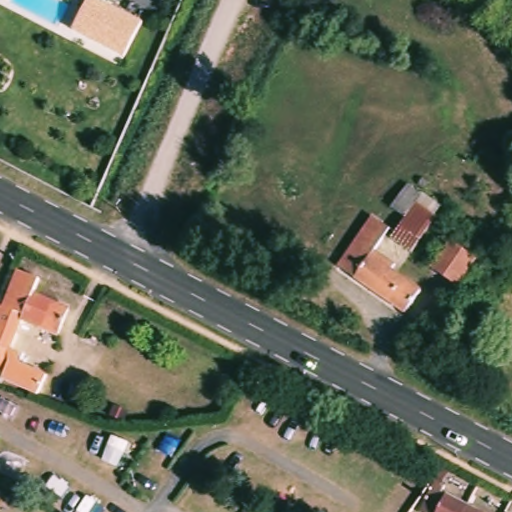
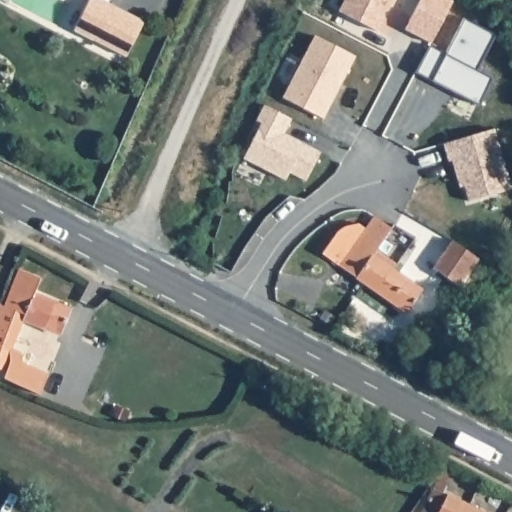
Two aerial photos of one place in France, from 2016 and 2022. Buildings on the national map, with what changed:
unchanged [(126,59),(71,31),(88,0),(106,0),(144,21),(126,59)]
new [(343,0),(394,0),(377,32),(337,11),(343,0)]
new [(419,0),(449,0),(451,1),(430,42),(404,29),(419,0)]
new [(416,71),(429,46),(445,54),(463,19),(493,34),(475,70),(491,78),(478,104),(416,71)]
new [(281,98),(313,36),(355,57),(323,120),(281,98)]
new [(242,158),(261,123),(255,120),(263,105),(291,119),(285,133),(320,151),(304,182),(288,173),(285,181),(242,158)]
new [(511,189),(467,202),(462,187),(458,187),(451,160),(447,161),(442,143),(494,129),(511,189)]
demolished [(406,218),(417,203),(437,217),(412,253),(392,239),(406,218)]
unchanged [(338,266),(373,217),(390,230),(375,251),(395,265),(392,271),(421,290),(406,313),(338,266)]
unchanged [(458,287),(432,268),(451,241),(477,259),(458,287)]
demolished [(432,242),(438,246),(432,254),(427,251),(432,242)]
unchanged [(33,294),(69,309),(59,335),(23,320),(10,350),(19,354),(20,361),(46,375),(38,395),(3,379),(1,383),(0,382),(0,304),(4,306),(19,271),(40,279),(33,294)]
unchanged [(124,422),(110,416),(114,406),(128,412),(124,422)]
unchanged [(441,486),(451,491),(447,498),(475,512),(427,512),(441,486)]

